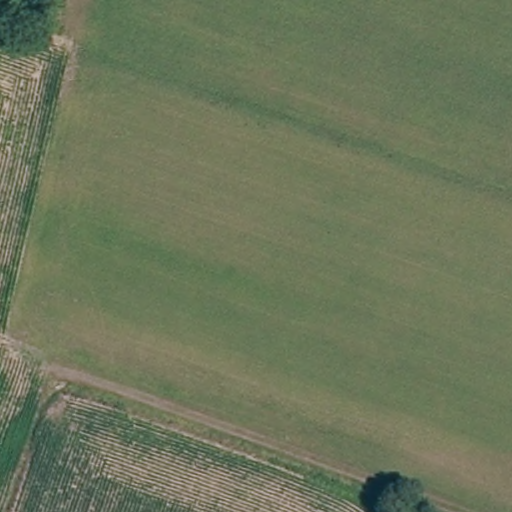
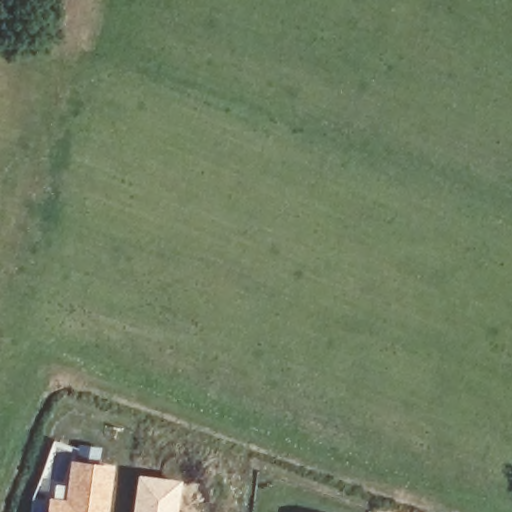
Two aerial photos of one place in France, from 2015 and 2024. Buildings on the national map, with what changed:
new [(51,495),(53,482),(64,483),(68,459),(114,465),(108,512),(46,512),(47,495),(51,495)]
new [(182,480),(178,510),(192,512),(132,512),(137,473),(182,480)]

